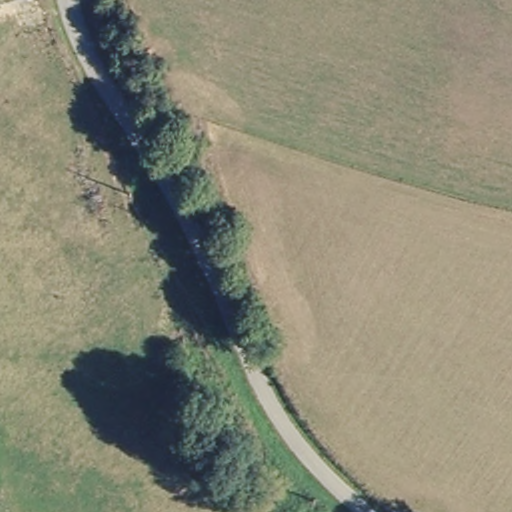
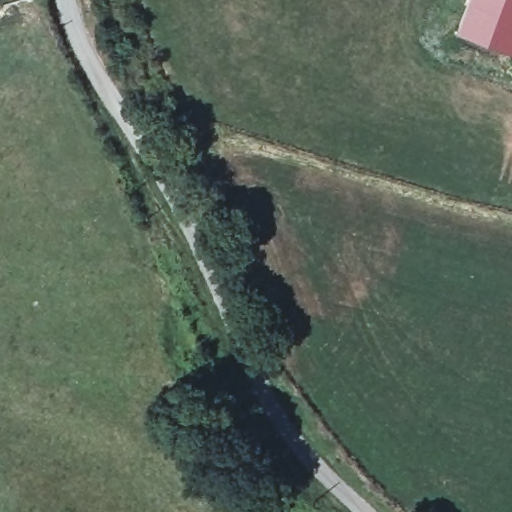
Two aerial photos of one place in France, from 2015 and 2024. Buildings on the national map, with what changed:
new [(466,0),(512,0),(512,52),(454,30),(466,0)]

